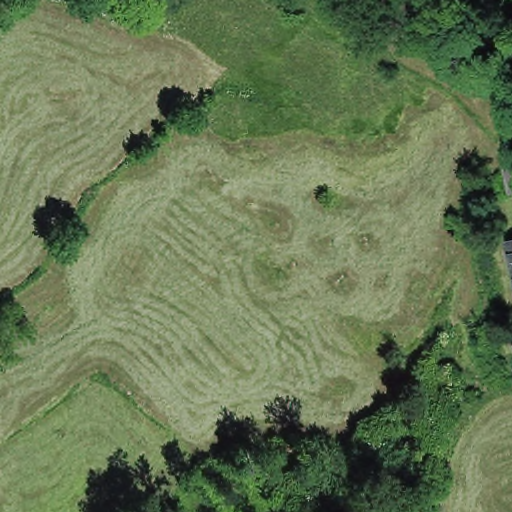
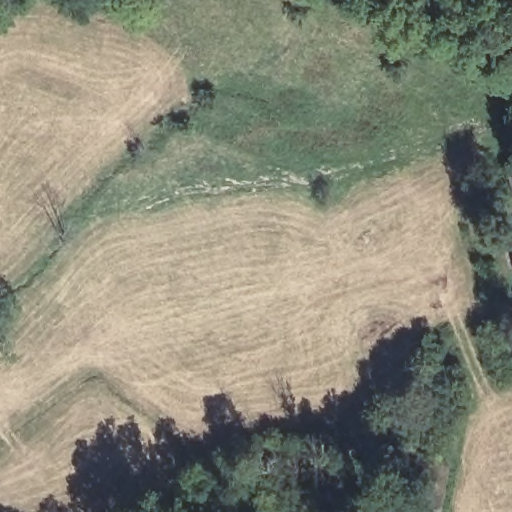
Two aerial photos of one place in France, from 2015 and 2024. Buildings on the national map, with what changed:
unchanged [(512,165),(512,184),(507,167),(512,165)]
unchanged [(435,462),(436,462),(447,465),(437,512),(422,512),(428,490),(435,462)]

